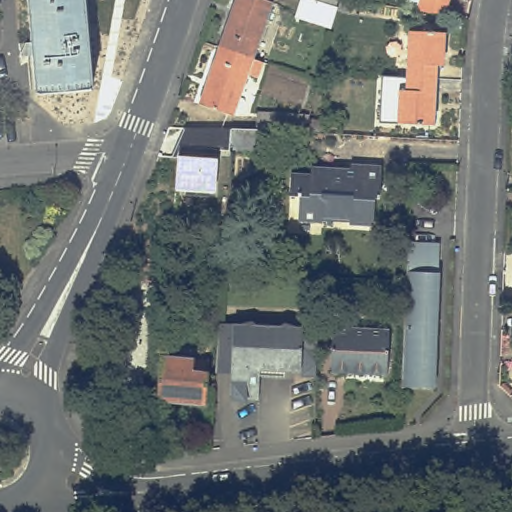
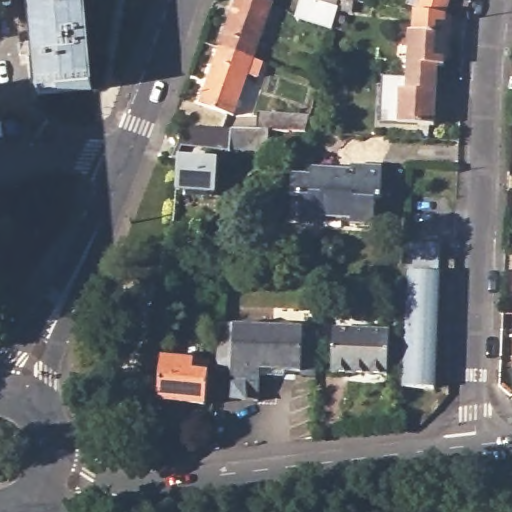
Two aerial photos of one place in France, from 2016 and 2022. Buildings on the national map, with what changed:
unchanged [(34,96),(31,57),(25,58),(24,46),(30,46),(26,0),(82,0),(89,91),(34,96)]
unchanged [(236,0),(260,0),(272,4),(254,60),(220,48),(236,0)]
unchanged [(305,0),(310,0),(338,9),(331,31),(298,21),(305,0)]
unchanged [(342,0),(340,8),(315,0),(342,0)]
unchanged [(426,0),(454,0),(448,17),(422,13),(426,0)]
unchanged [(342,8),(343,1),(357,2),(356,10),(342,8)]
unchanged [(412,77),(414,32),(447,34),(446,67),(439,67),(438,80),(412,77)]
unchanged [(256,79),(248,77),(235,117),(201,106),(220,48),(254,60),(262,62),(256,79)]
unchanged [(386,76),(412,77),(438,80),(435,127),(381,122),(386,76)]
unchanged [(233,132),(259,134),(260,117),(305,121),(304,124),(301,136),(268,134),(267,155),(231,153),(233,132)]
unchanged [(386,169),(385,201),(380,201),(379,227),(354,227),(355,222),(332,220),(331,226),(301,224),(303,199),(293,198),(294,176),(314,177),(314,170),(340,171),(340,172),(355,172),(355,167),(386,169)]
unchanged [(408,245),(440,247),(432,390),(399,388),(406,287),(408,245)]
unchanged [(221,356),(223,327),(223,321),(307,327),(303,372),(262,370),(259,398),(232,397),(234,372),(220,371),(221,356)]
unchanged [(331,374),(333,330),(389,333),(386,377),(331,374)]
unchanged [(160,400),(163,357),(211,362),(207,405),(160,400)]

